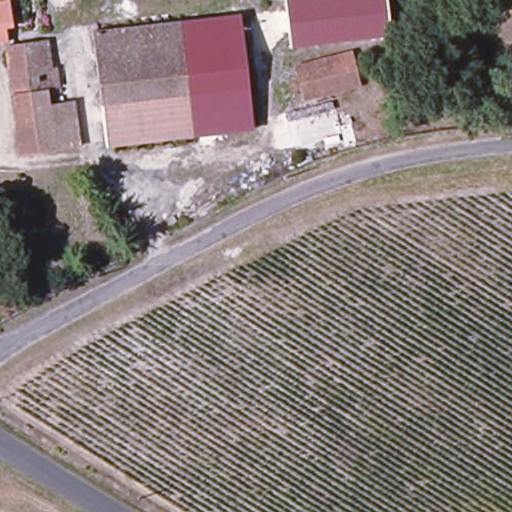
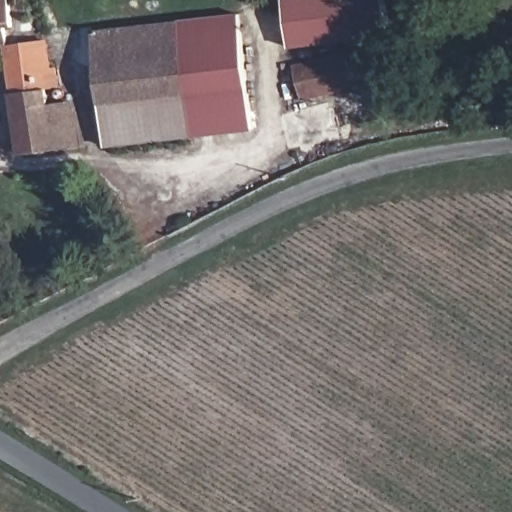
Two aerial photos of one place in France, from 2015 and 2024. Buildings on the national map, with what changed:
unchanged [(12,32),(8,32),(10,50),(0,51),(0,0),(10,0),(12,32)]
unchanged [(286,0),(386,0),(389,35),(290,47),(286,0)]
unchanged [(182,100),(174,30),(240,14),(254,129),(187,144),(182,100)]
unchanged [(182,100),(100,110),(92,40),(174,30),(182,100)]
unchanged [(42,46),(46,77),(64,75),(67,100),(50,102),(52,121),(71,119),(75,152),(20,159),(10,50),(42,46)]
unchanged [(299,111),(289,75),(348,62),(356,96),(299,111)]
unchanged [(182,100),(187,144),(105,157),(100,110),(182,100)]

